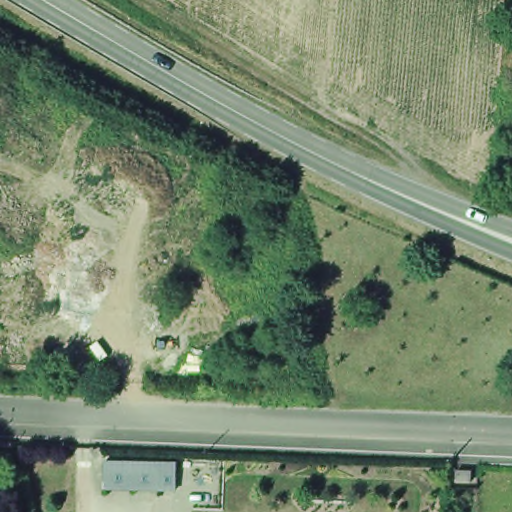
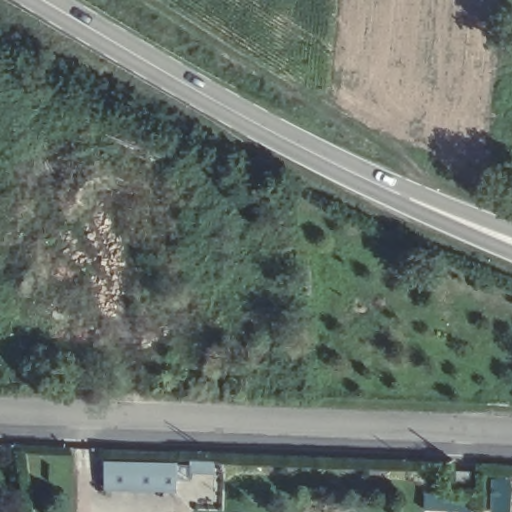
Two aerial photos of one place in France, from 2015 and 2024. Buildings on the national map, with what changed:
unchanged [(477,465),(477,478),(457,478),(457,465),(477,465)]
unchanged [(166,496),(97,495),(97,469),(167,470),(166,496)]

